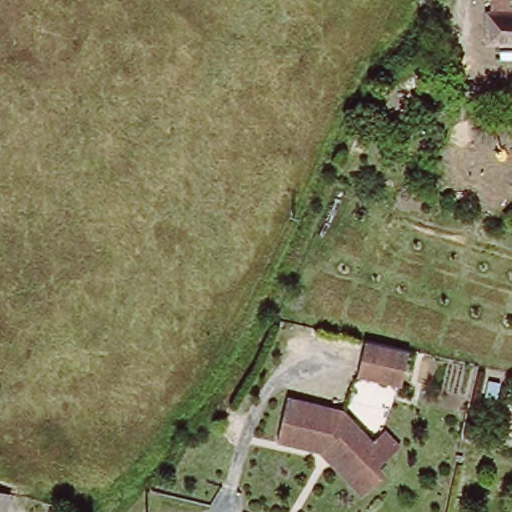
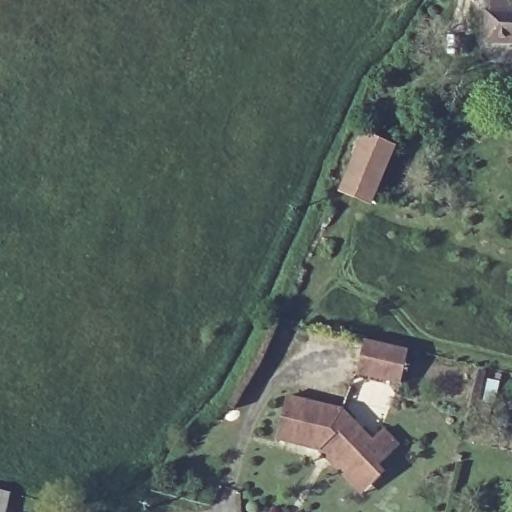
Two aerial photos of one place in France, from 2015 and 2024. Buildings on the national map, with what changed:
unchanged [(469,22),(480,21),(480,14),(487,13),(487,0),(512,0),(512,47),(469,46),(469,22)]
new [(337,193),(362,131),(397,145),(371,207),(337,193)]
unchanged [(359,341),(404,351),(396,385),(352,376),(359,341)]
unchanged [(360,497),(317,453),(272,443),(282,399),(340,412),(369,442),(380,430),(396,447),(371,471),(378,477),(360,497)]
unchanged [(9,498),(6,512),(0,512),(0,496),(9,498)]

